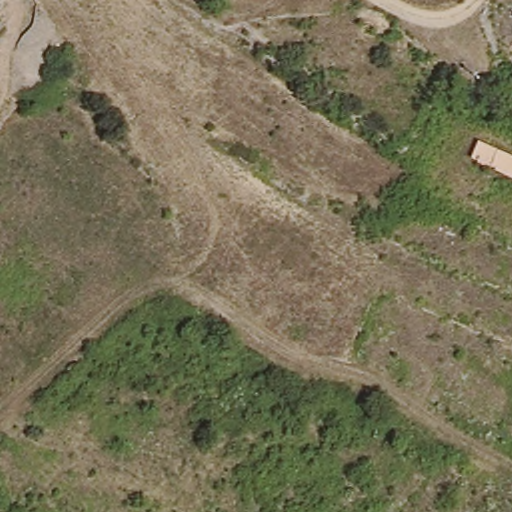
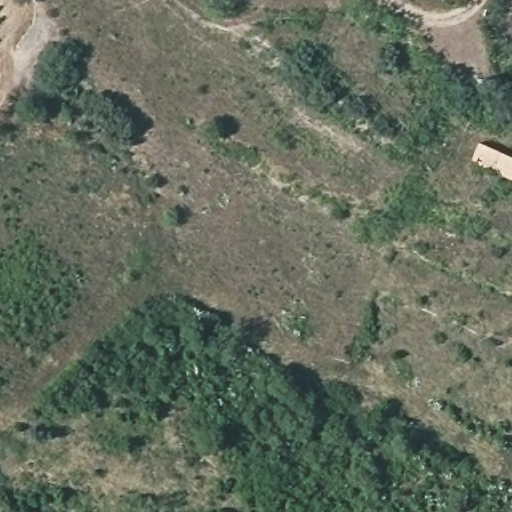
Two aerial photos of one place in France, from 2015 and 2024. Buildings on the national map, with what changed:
unchanged [(478,143),(512,158),(512,177),(472,159),(478,143)]

